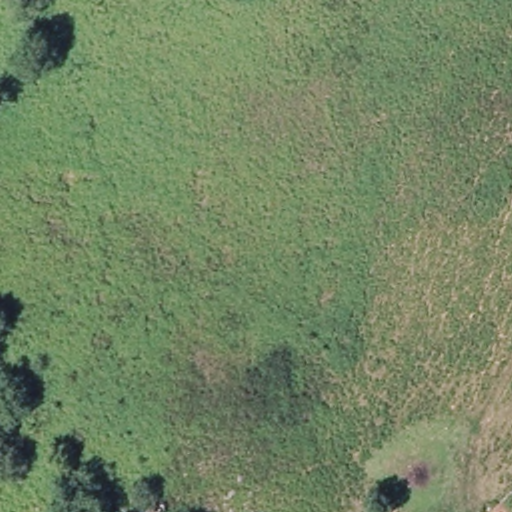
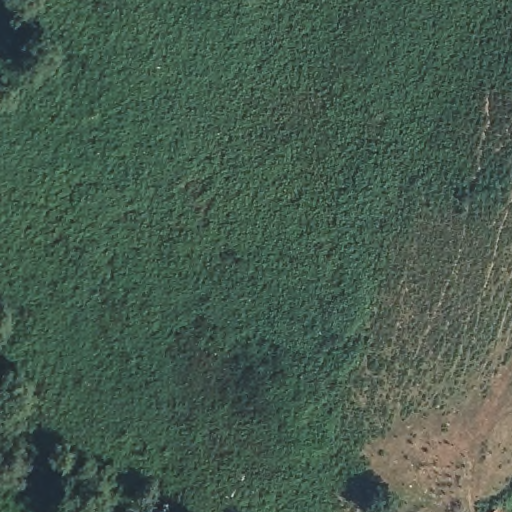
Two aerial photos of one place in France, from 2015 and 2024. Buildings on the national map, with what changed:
unchanged [(500,504),(507,512),(491,512),(500,504)]

